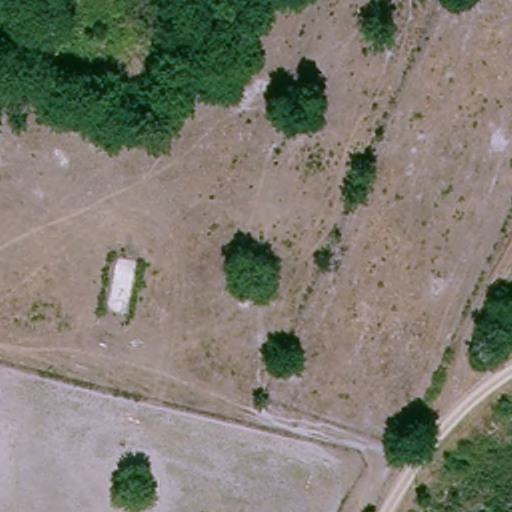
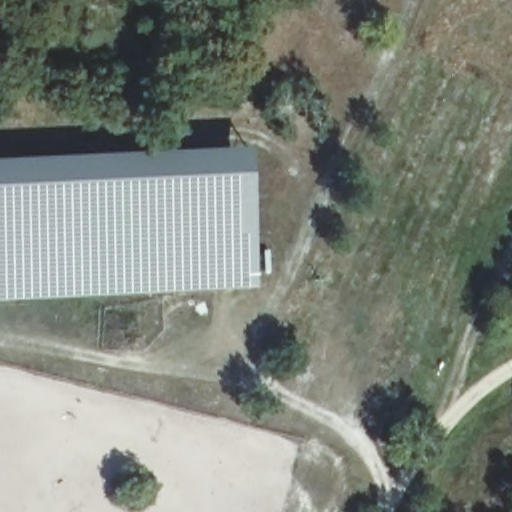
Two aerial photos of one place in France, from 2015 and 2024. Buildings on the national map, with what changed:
new [(0,299),(0,159),(250,148),(258,286),(0,299)]

